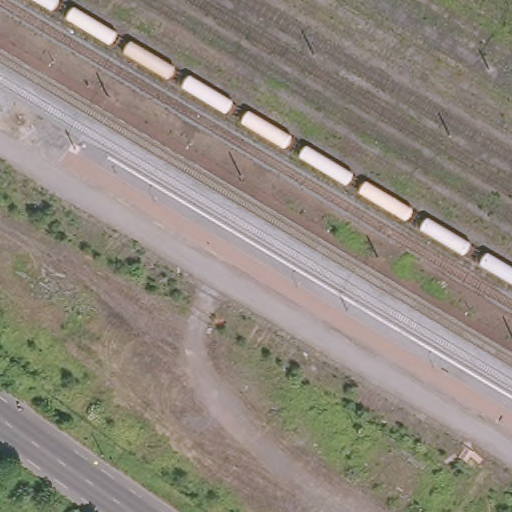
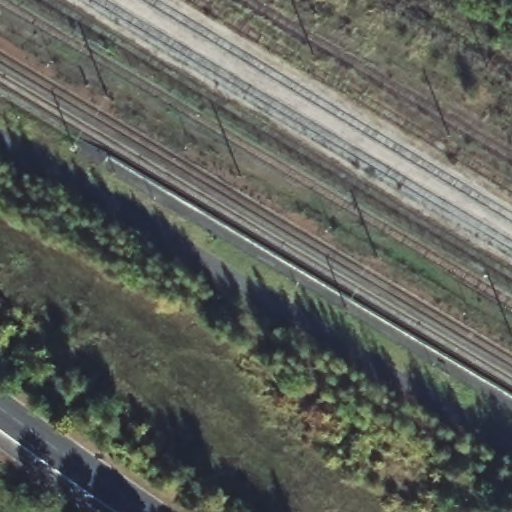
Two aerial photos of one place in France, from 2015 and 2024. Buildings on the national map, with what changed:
[]

